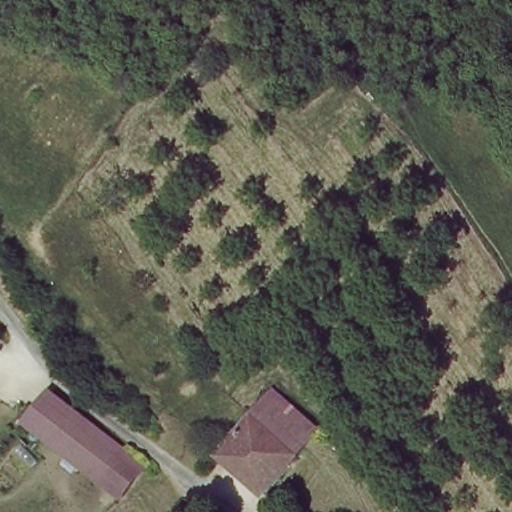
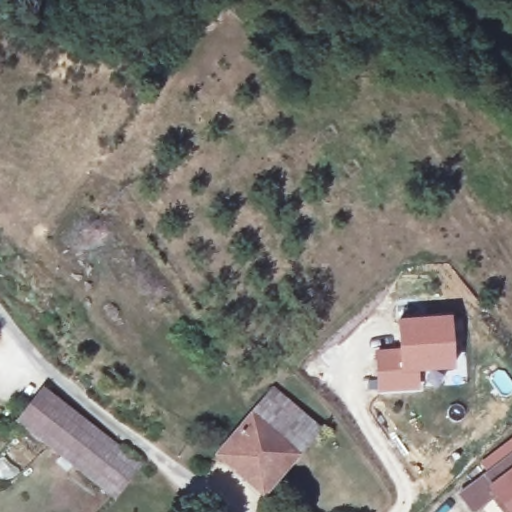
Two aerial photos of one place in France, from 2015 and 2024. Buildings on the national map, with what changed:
new [(377,392),(375,353),(399,349),(397,319),(450,314),(452,369),(418,371),(418,389),(377,392)]
unchanged [(280,387),(318,426),(294,449),(255,411),(280,387)]
unchanged [(140,461),(110,497),(21,421),(45,390),(140,461)]
unchanged [(256,487),(217,449),(255,411),(294,449),(256,487)]
new [(475,512),(471,512),(457,493),(512,453),(512,512),(507,512),(495,496),(475,512)]

